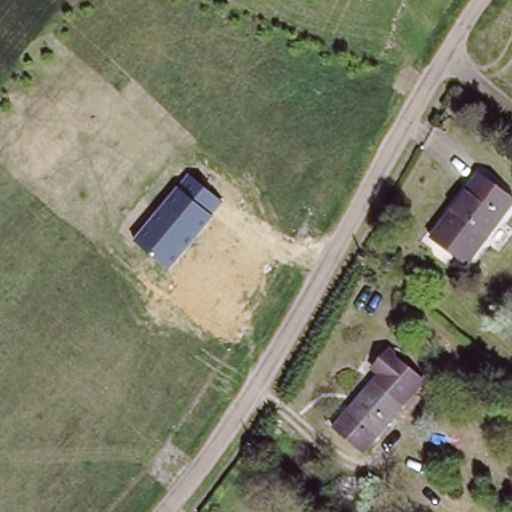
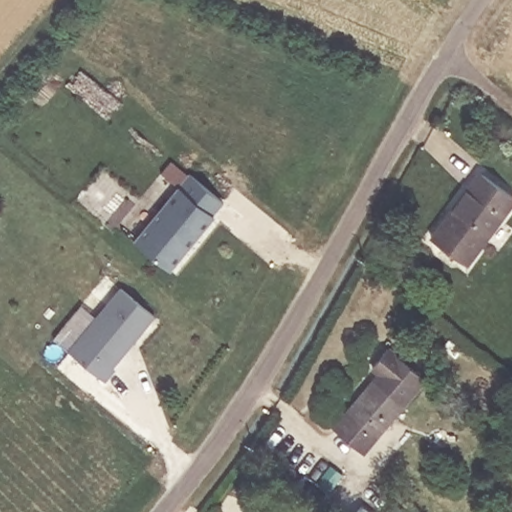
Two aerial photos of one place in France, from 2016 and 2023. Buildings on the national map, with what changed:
unchanged [(483,169),(512,192),(512,209),(472,262),(435,234),(483,169)]
unchanged [(135,241),(188,174),(224,201),(170,269),(135,241)]
new [(112,372),(102,385),(66,356),(119,292),(152,320),(130,347),(110,370),(112,372)]
unchanged [(389,374),(382,368),(398,349),(431,377),(367,450),(342,428),(389,374)]

